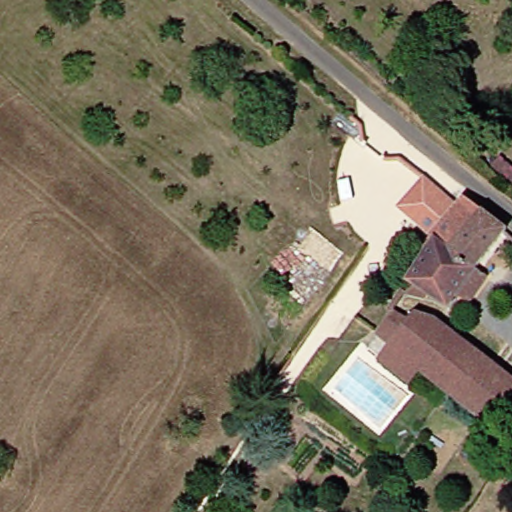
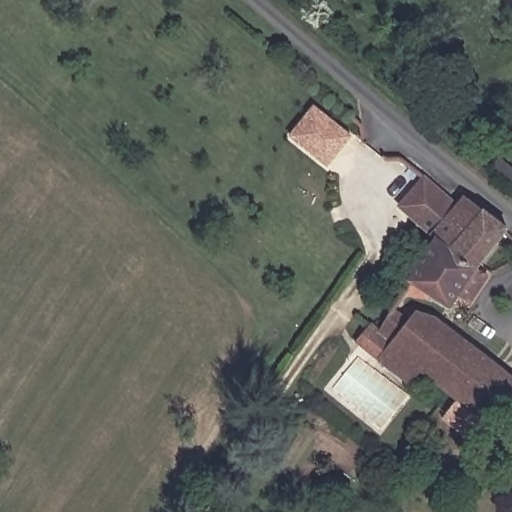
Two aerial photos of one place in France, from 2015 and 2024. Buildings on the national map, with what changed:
new [(328,167),(289,136),(314,104),(353,136),(328,167)]
unchanged [(463,204),(437,238),(398,209),(423,175),(463,204)]
unchanged [(469,300),(461,294),(451,308),(409,280),(437,238),(467,198),(508,229),(478,269),(474,274),(483,279),(469,300)]
unchanged [(427,369),(415,384),(384,359),(396,344),(383,333),(396,311),(413,322),(420,313),(442,319),(496,361),(466,401),(427,369)]
unchanged [(512,372),(512,407),(498,426),(466,401),(496,361),(512,372)]
unchanged [(512,424),(512,430),(509,428),(512,424)]

